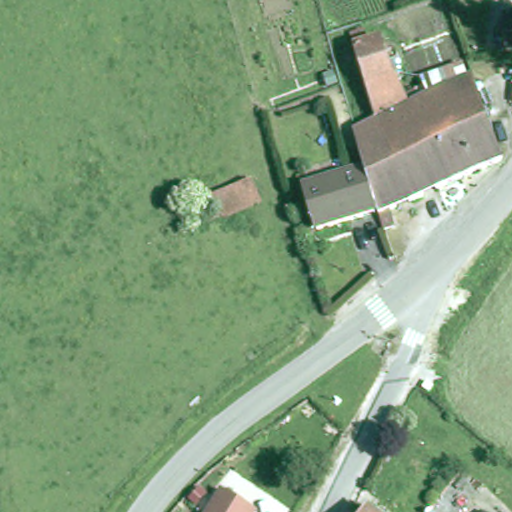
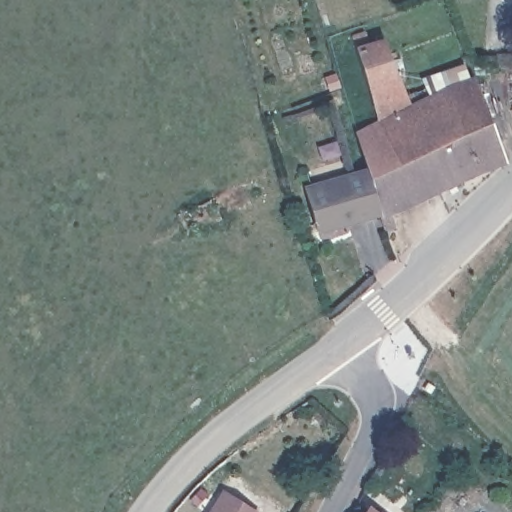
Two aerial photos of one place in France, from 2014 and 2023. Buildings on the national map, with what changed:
unchanged [(383,123),(354,31),(361,29),(373,45),(388,40),(412,110),(478,80),(507,159),(505,161),(395,211),(400,228),(390,232),(383,211),(371,171),(360,134),(383,123)]
unchanged [(322,231),(310,190),(371,171),(383,211),(322,231)]
unchanged [(256,512),(208,512),(221,491),(256,512)]
unchanged [(371,512),(365,512),(367,509),(371,512)]

